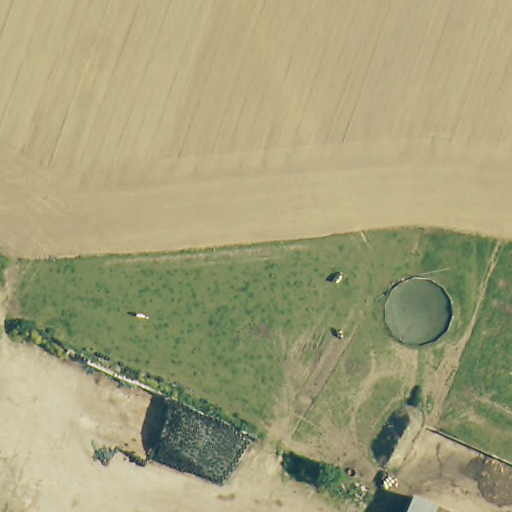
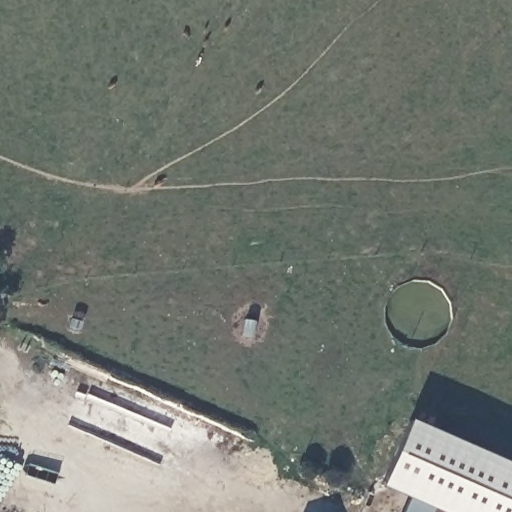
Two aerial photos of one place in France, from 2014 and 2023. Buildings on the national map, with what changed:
new [(409,500),(382,488),(411,420),(512,464),(512,512),(434,512),(409,500)]
unchanged [(434,512),(404,512),(409,500),(434,512)]

